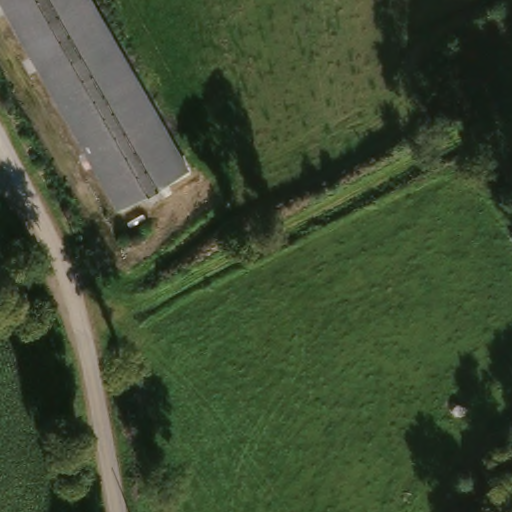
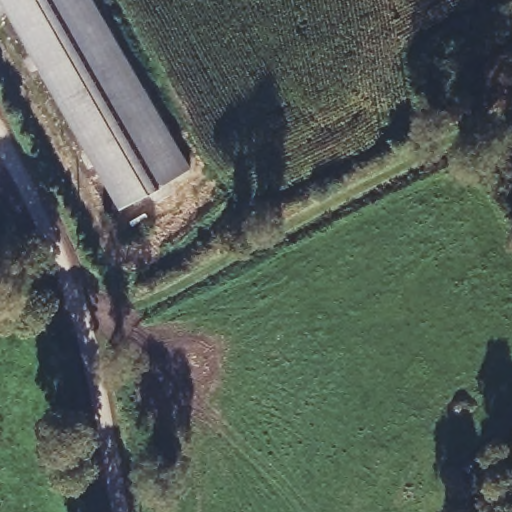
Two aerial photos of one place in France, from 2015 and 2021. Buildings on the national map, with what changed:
unchanged [(89,0),(183,175),(116,212),(2,0),(89,0)]

